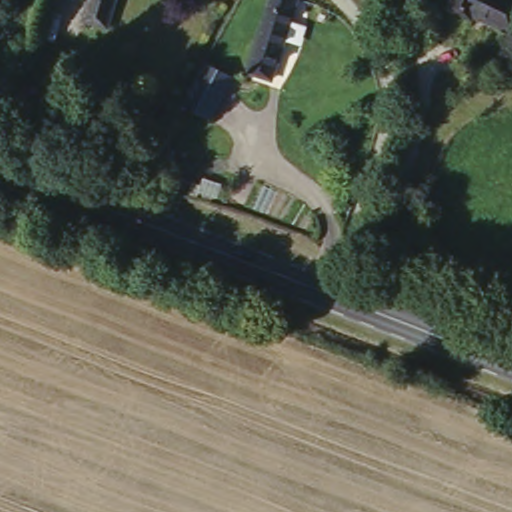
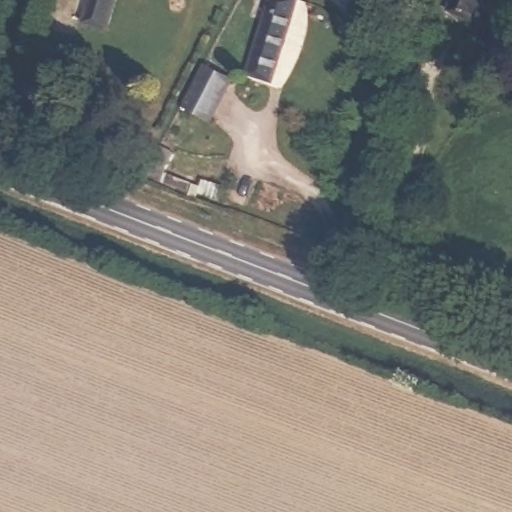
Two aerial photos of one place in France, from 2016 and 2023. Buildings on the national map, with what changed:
unchanged [(104,19),(84,12),(88,0),(110,0),(104,19)]
unchanged [(275,73),(254,65),(274,0),(299,0),(275,73)]
unchanged [(444,0),(512,0),(512,18),(510,22),(471,7),(469,12),(443,1),(444,0)]
unchanged [(203,63),(225,75),(209,115),(184,102),(203,63)]

